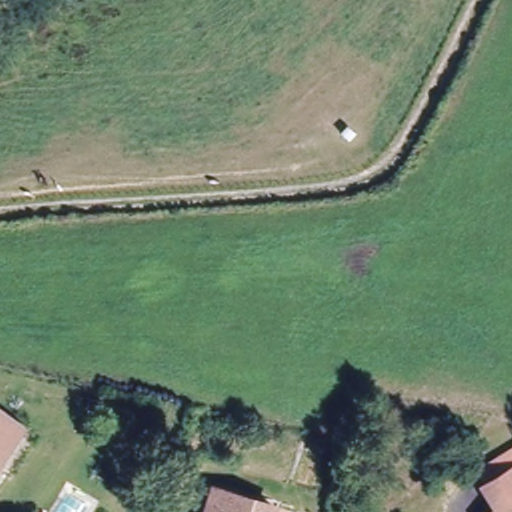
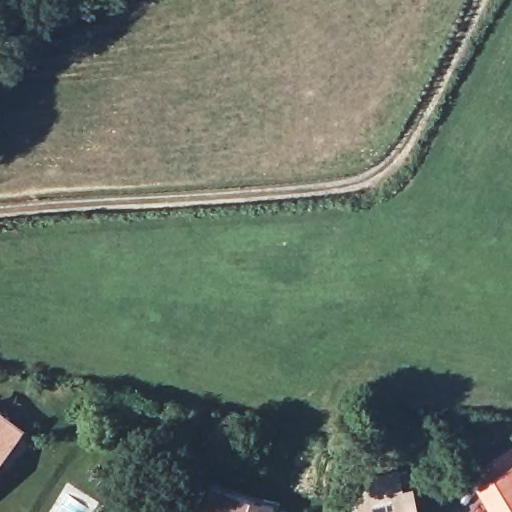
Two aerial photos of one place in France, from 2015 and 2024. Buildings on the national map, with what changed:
unchanged [(21,433),(0,460),(0,417),(21,433)]
unchanged [(481,486),(484,484),(475,471),(502,454),(512,448),(512,512),(489,512),(495,508),(481,486)]
new [(401,469),(406,487),(416,486),(423,512),(361,512),(354,482),(401,469)]
unchanged [(277,506),(276,512),(211,512),(218,489),(277,506)]

